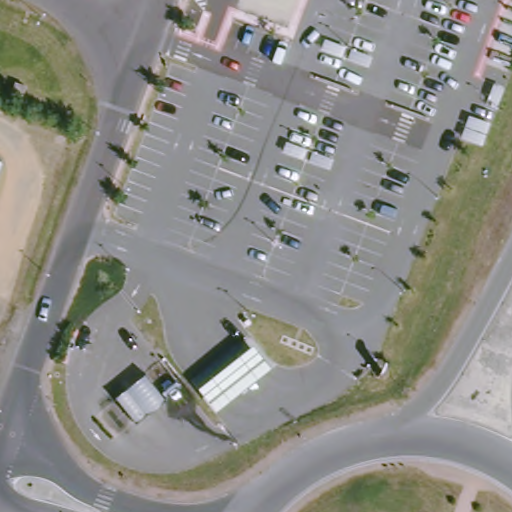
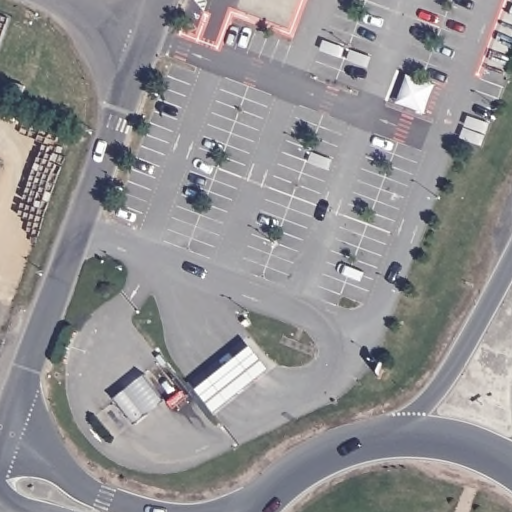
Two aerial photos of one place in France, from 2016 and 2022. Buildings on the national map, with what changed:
unchanged [(24,84),(20,98),(9,94),(14,81),(24,84)]
unchanged [(0,161),(0,156),(1,156),(0,161)]
unchanged [(201,392),(256,349),(274,373),(218,416),(201,392)]
unchanged [(118,401),(148,378),(168,407),(138,429),(118,401)]

